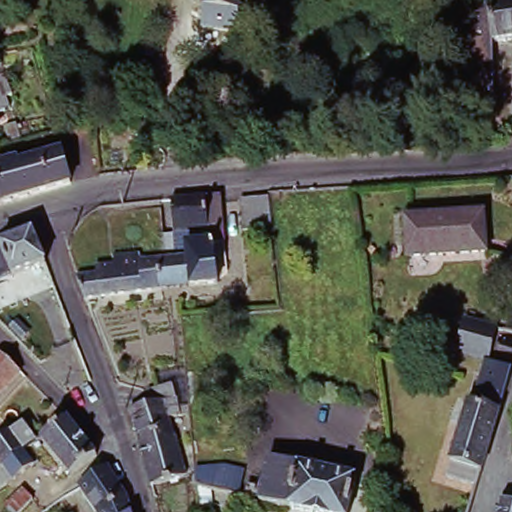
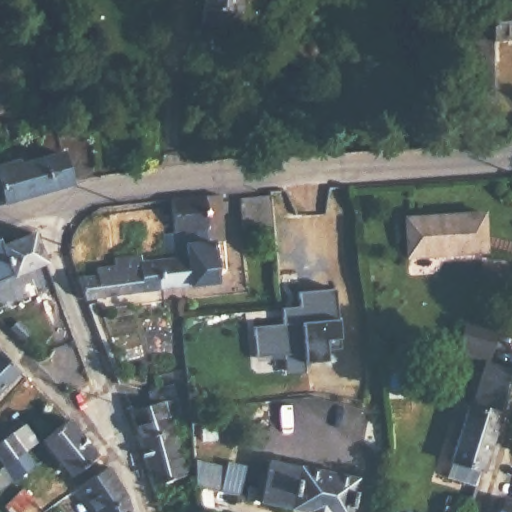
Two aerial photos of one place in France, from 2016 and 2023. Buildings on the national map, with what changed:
unchanged [(201,25),(203,2),(203,0),(240,0),(236,29),(201,25)]
unchanged [(471,45),(471,42),(471,27),(472,7),(512,2),(512,37),(492,39),(493,45),(493,59),(493,100),(470,100),(470,91),(470,79),(471,49),(471,45)]
unchanged [(287,102),(287,109),(318,112),(319,119),(312,118),(311,137),(267,135),(269,120),(262,105),(261,100),(287,102)]
unchanged [(30,201),(0,208),(0,172),(22,166),(32,163),(31,158),(47,153),(50,162),(77,154),(86,185),(30,201)]
unchanged [(153,262),(162,262),(160,236),(171,234),(168,202),(202,198),(218,197),(222,247),(210,250),(213,285),(157,293),(153,262)]
unchanged [(274,234),(242,237),(239,206),(271,204),(274,234)]
unchanged [(487,256),(409,261),(406,222),(483,217),(487,256)]
unchanged [(43,267),(11,281),(10,280),(0,283),(0,248),(30,235),(43,267)]
unchanged [(94,271),(112,268),(112,262),(138,258),(139,265),(153,262),(157,293),(149,295),(82,303),(75,281),(94,278),(94,271)]
new [(339,320),(340,338),(340,351),(326,350),(326,361),(305,363),(306,375),(286,377),(285,357),(258,360),(255,328),(282,326),(281,310),(300,309),(300,293),(334,291),(339,320)]
unchanged [(489,364),(458,356),(467,323),(499,332),(489,364)]
unchanged [(21,377),(0,398),(0,358),(2,357),(21,377)]
unchanged [(447,477),(468,403),(475,405),(486,367),(510,376),(501,403),(490,441),(478,486),(447,477)]
unchanged [(123,412),(145,406),(141,392),(150,388),(153,387),(166,384),(170,398),(172,397),(177,415),(165,419),(182,473),(149,486),(136,447),(128,427),(123,412)]
unchanged [(76,433),(89,450),(94,455),(66,475),(39,440),(64,421),(76,433)]
unchanged [(20,423),(34,442),(22,452),(32,465),(0,487),(0,438),(20,423)]
unchanged [(266,461),(352,478),(346,512),(300,512),(257,503),(257,500),(242,496),(191,486),(190,474),(244,484),(245,482),(247,482),(260,485),(266,461)]
unchanged [(128,494),(133,512),(97,512),(80,485),(93,477),(109,467),(128,494)]
unchanged [(32,495),(11,509),(4,498),(24,484),(32,495)]
unchanged [(502,509),(504,505),(512,507),(512,512),(501,512),(502,509)]

